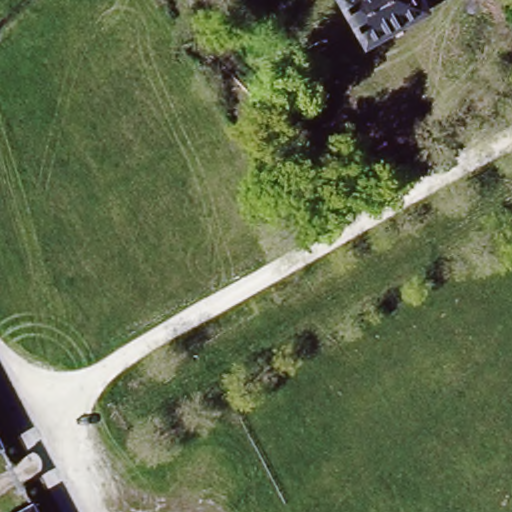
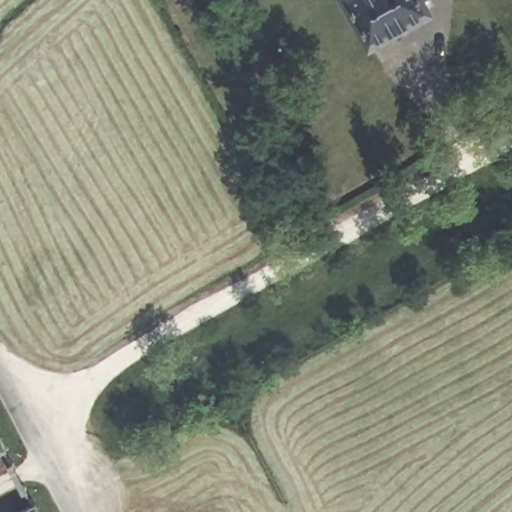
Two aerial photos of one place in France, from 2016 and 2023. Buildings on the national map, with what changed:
unchanged [(370,45),(342,0),(424,0),(430,9),(370,45)]
unchanged [(0,457),(0,413),(18,448),(0,457)]
unchanged [(45,504),(49,512),(27,512),(45,504)]

